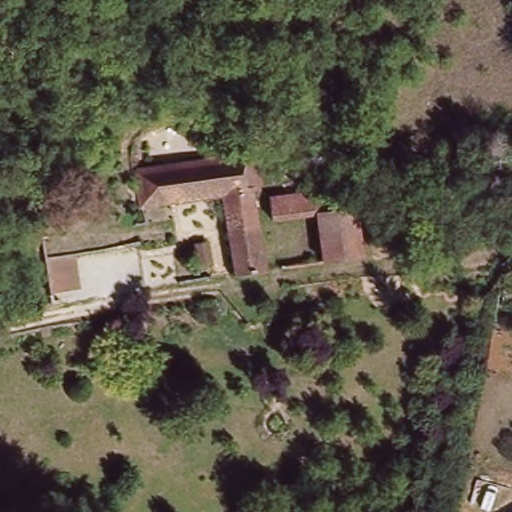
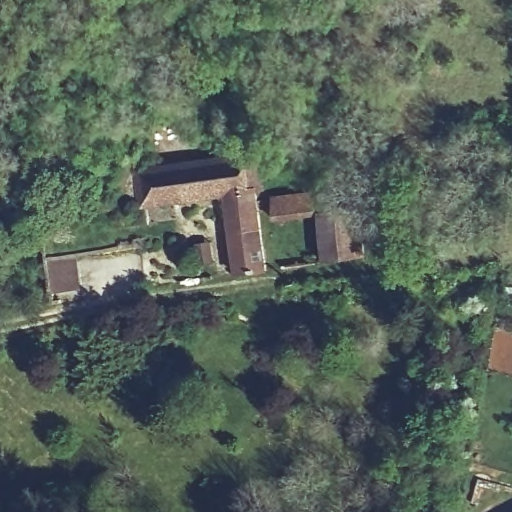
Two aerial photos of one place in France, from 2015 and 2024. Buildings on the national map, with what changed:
unchanged [(135,169),(256,156),(258,193),(253,194),(260,273),(230,277),(221,198),(138,207),(135,169)]
unchanged [(320,220),(277,225),(273,201),(316,195),(319,210),(320,220)]
unchanged [(363,254),(364,260),(326,265),(320,220),(319,210),(356,206),(363,254)]
unchanged [(77,296),(49,300),(44,265),(72,261),(77,296)]

